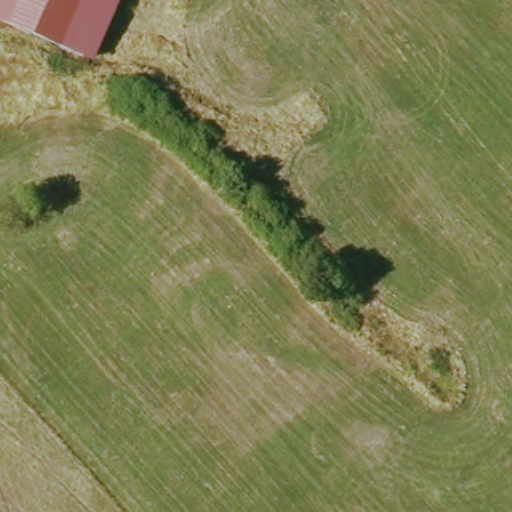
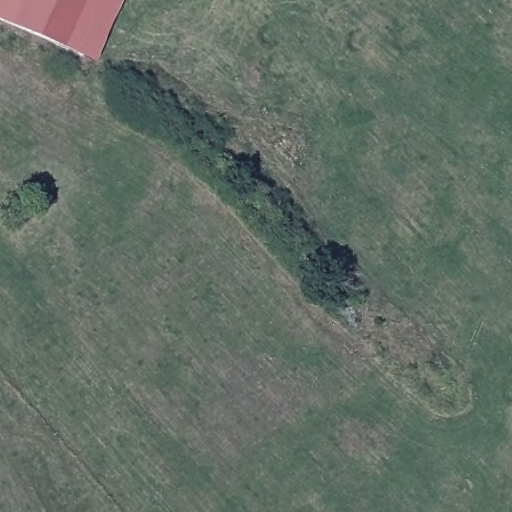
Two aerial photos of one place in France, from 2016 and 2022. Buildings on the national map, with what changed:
unchanged [(0,21),(0,0),(123,0),(95,64),(0,21)]

